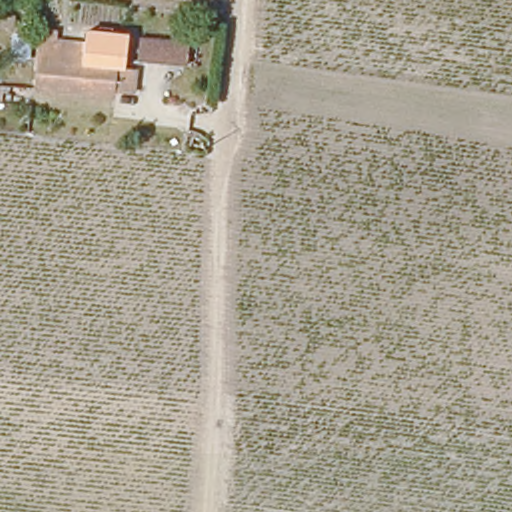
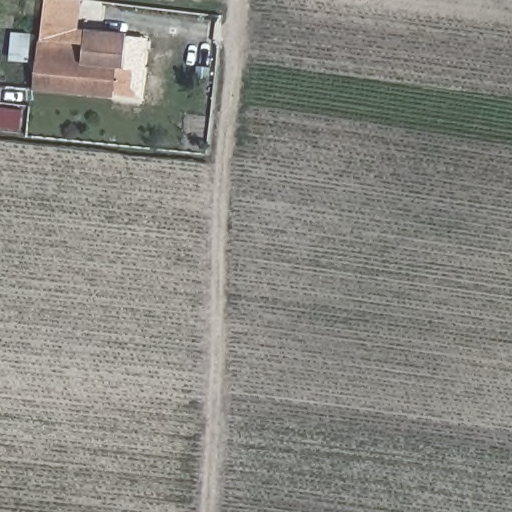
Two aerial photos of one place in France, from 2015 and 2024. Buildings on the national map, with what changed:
new [(82,42),(42,39),(46,0),(81,0),(77,29),(85,30),(82,42)]
unchanged [(85,30),(128,32),(126,67),(116,66),(81,61),(82,42),(85,30)]
unchanged [(34,89),(34,62),(6,59),(7,36),(82,42),(81,61),(116,66),(126,67),(135,69),(135,91),(112,89),(112,98),(34,89)]
unchanged [(132,60),(132,39),(187,44),(184,65),(132,60)]

